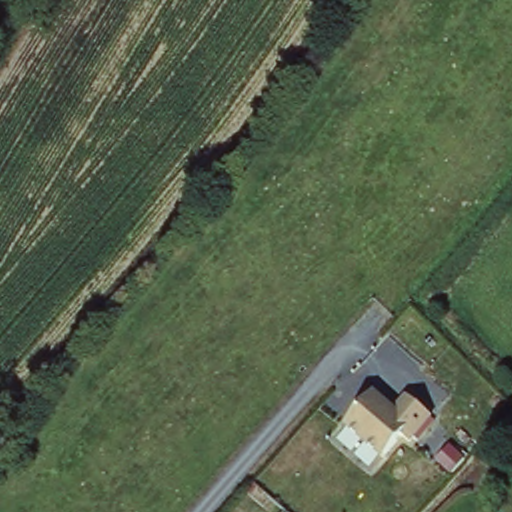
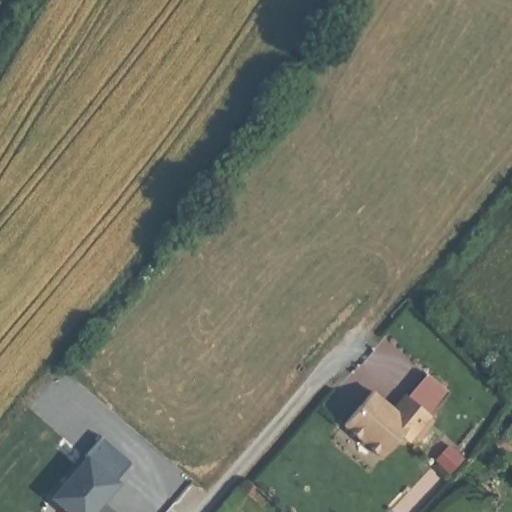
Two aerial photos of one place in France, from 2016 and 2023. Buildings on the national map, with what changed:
unchanged [(375,389),(391,404),(403,391),(434,416),(413,440),(402,433),(381,459),(340,426),(375,389)]
new [(89,454),(103,434),(135,462),(119,480),(121,482),(105,501),(117,512),(70,512),(52,497),(89,454)]

